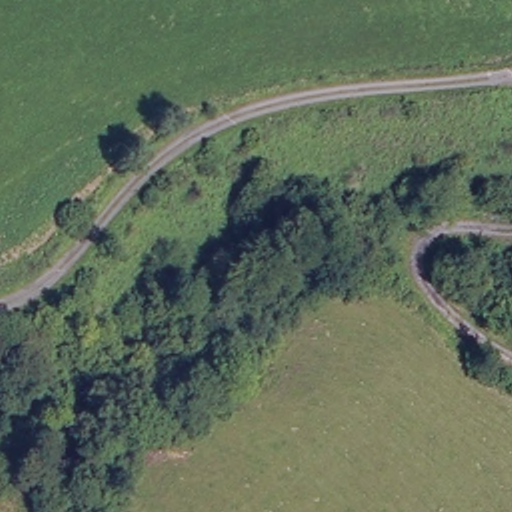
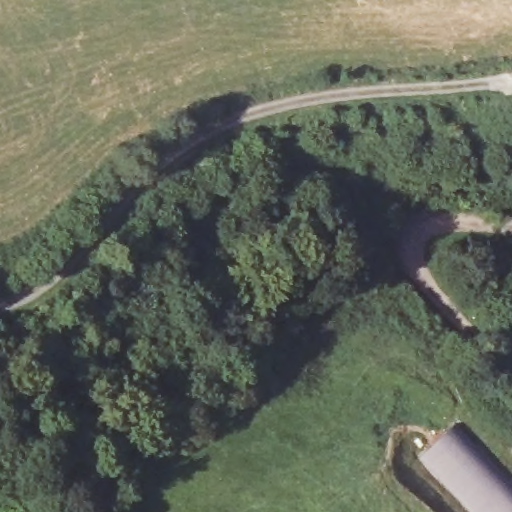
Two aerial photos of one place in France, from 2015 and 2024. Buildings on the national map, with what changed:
new [(453,425),(512,486),(512,512),(468,512),(417,458),(453,425)]

